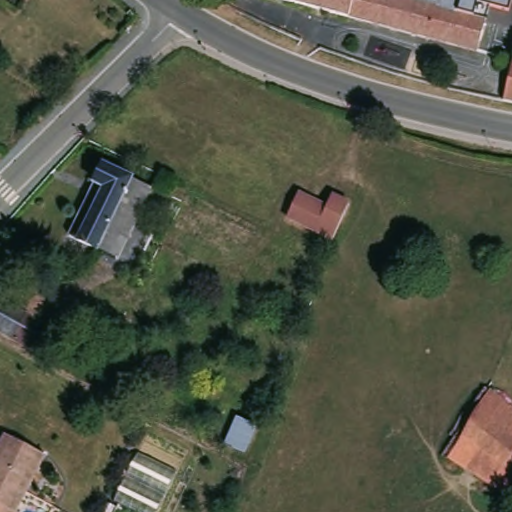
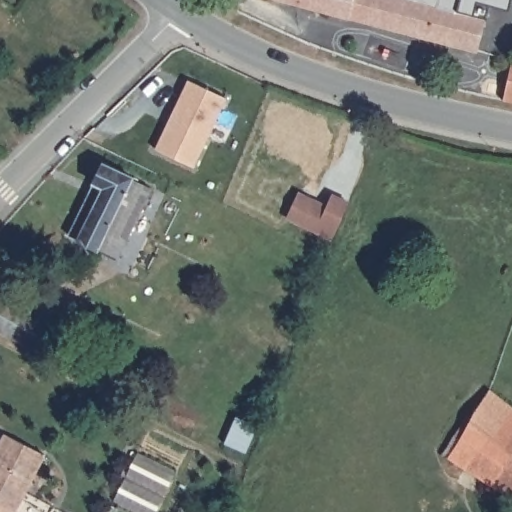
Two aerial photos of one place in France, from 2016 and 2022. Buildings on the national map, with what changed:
unchanged [(330,15),(282,0),(399,0),(421,7),(437,11),(429,43),(330,15)]
unchanged [(488,5),(484,23),(437,11),(421,7),(399,0),(510,0),(507,10),(488,5)]
unchanged [(429,43),(437,11),(484,23),(476,56),(429,43)]
unchanged [(502,99),(512,61),(512,101),(502,99)]
new [(226,98),(194,167),(154,150),(186,81),(226,98)]
unchanged [(93,185),(100,167),(150,189),(123,253),(122,257),(71,235),(74,230),(89,192),(93,185)]
unchanged [(287,216),(298,193),(326,205),(332,192),(343,197),(349,200),(334,236),(327,233),(287,216)]
unchanged [(11,337),(0,330),(0,299),(25,313),(11,337)]
unchanged [(498,492),(469,475),(476,464),(455,451),(457,447),(480,400),(483,402),(501,417),(512,425),(512,486),(505,482),(498,492)]
unchanged [(14,512),(0,512),(0,446),(6,432),(46,453),(14,512)]

